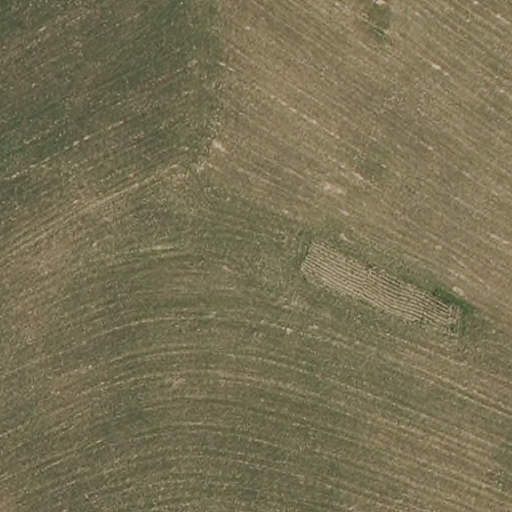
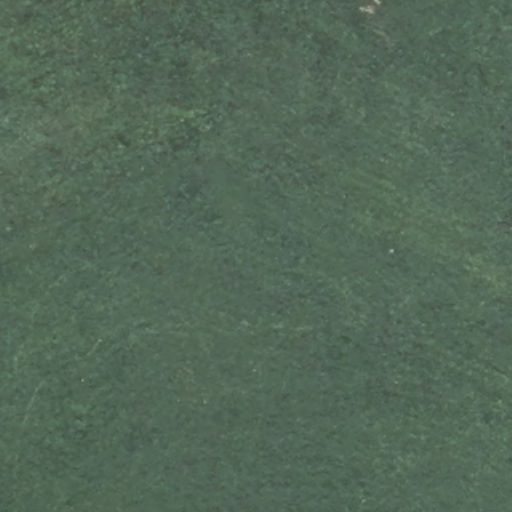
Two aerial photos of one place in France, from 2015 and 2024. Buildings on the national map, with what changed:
[]

